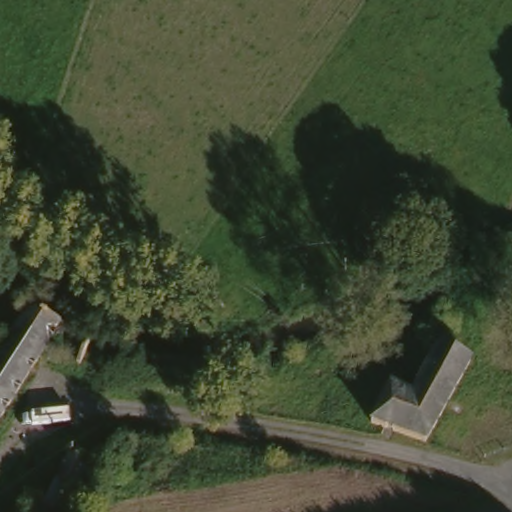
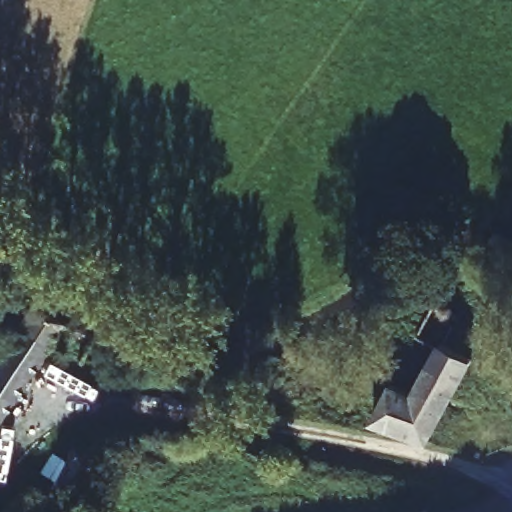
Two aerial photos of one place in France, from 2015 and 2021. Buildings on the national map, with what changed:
unchanged [(34,307),(89,342),(93,345),(78,368),(48,349),(0,425),(0,357),(2,358),(34,307)]
unchanged [(436,444),(434,447),(395,428),(381,422),(400,386),(422,397),(448,348),(455,351),(479,364),(436,444)]
unchanged [(95,457),(81,485),(84,486),(71,512),(43,512),(75,448),(95,457)]

